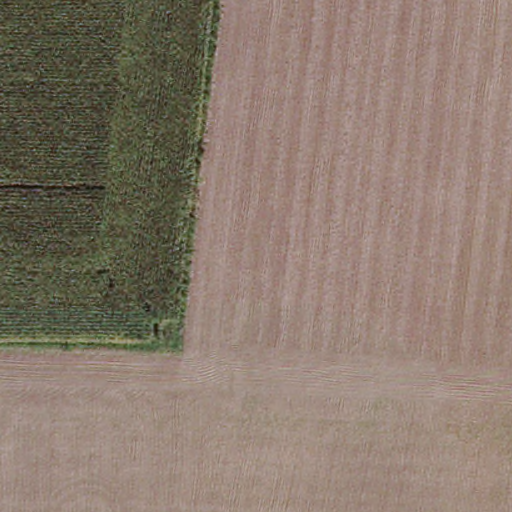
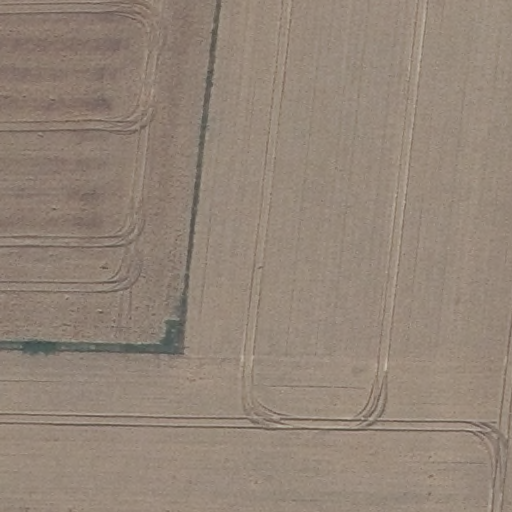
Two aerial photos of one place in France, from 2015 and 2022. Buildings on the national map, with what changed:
[]

